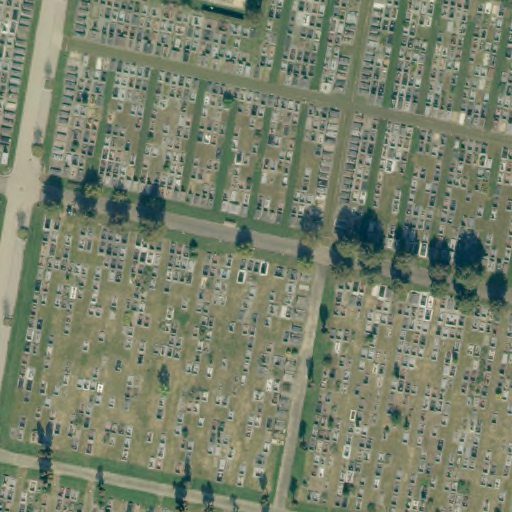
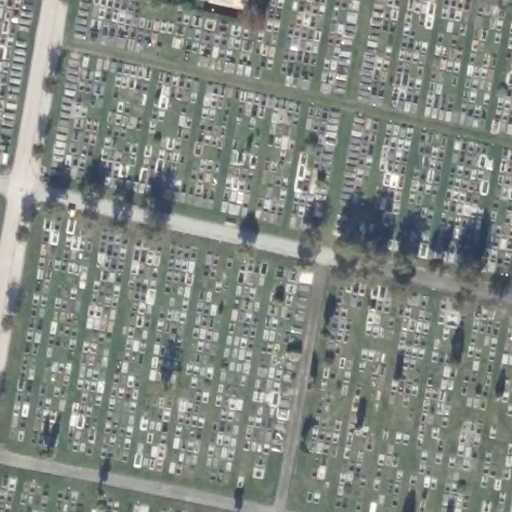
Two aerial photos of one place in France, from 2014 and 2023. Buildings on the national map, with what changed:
unchanged [(210,0),(248,0),(246,9),(210,2),(210,0)]

